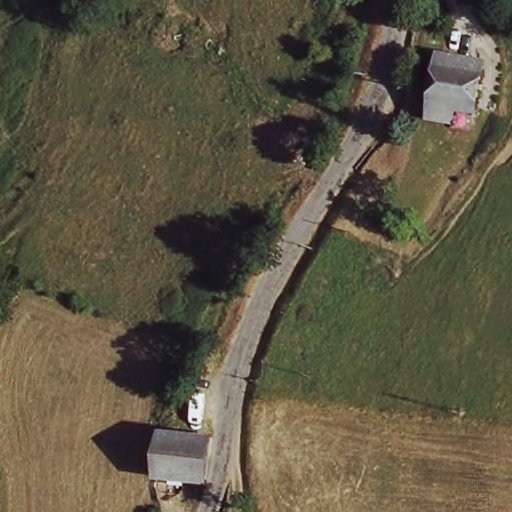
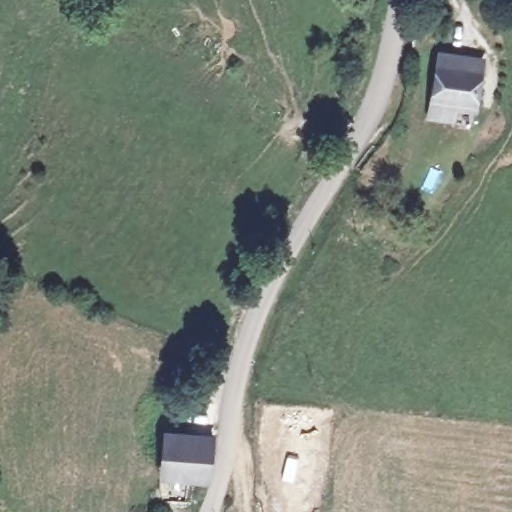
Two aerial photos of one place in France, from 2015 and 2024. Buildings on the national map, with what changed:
unchanged [(423,107),(426,92),(432,51),(477,59),(470,98),(468,114),(423,107)]
unchanged [(160,428),(207,434),(202,473),(155,468),(160,428)]

